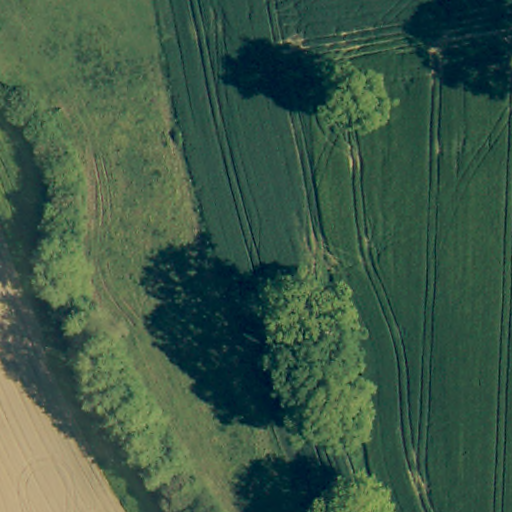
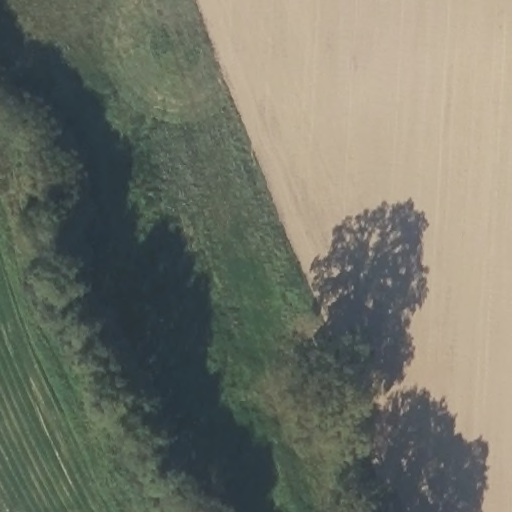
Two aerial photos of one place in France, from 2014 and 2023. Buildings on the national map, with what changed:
[]

